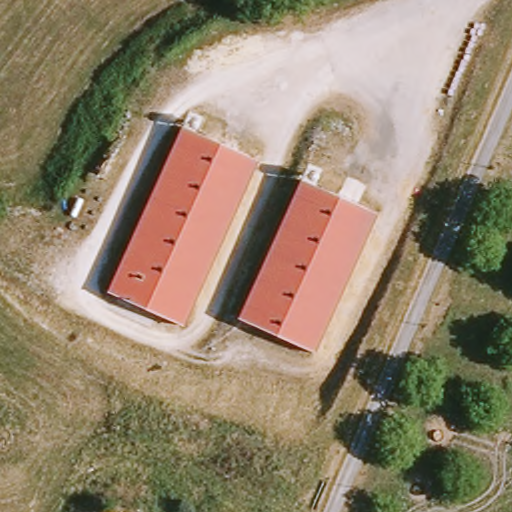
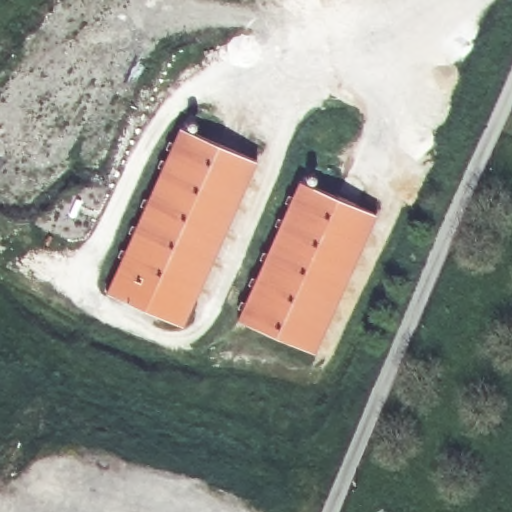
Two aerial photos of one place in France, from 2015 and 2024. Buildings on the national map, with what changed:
unchanged [(182,323),(107,288),(183,124),(259,159),(182,323)]
unchanged [(302,180),(377,214),(313,352),(238,317),(302,180)]

